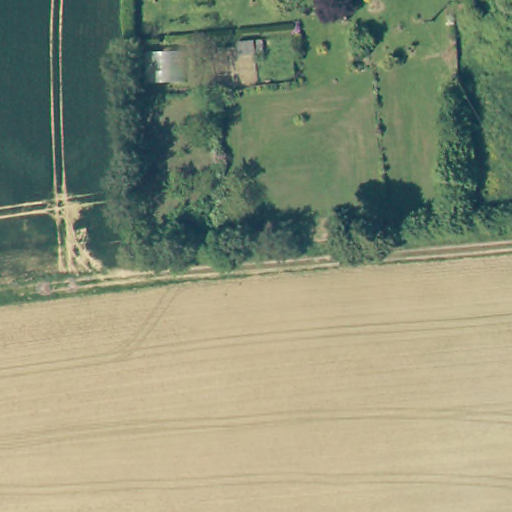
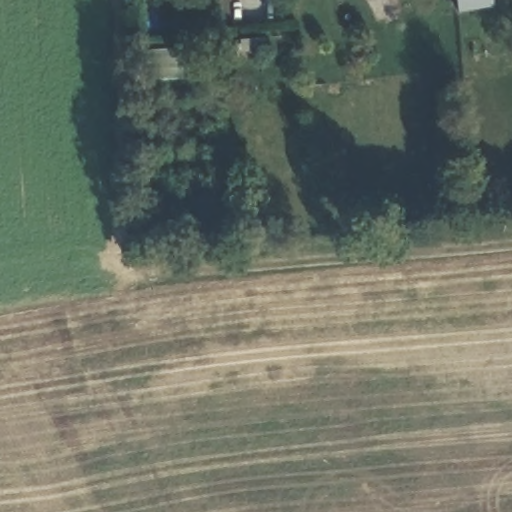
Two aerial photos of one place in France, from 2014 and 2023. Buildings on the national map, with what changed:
new [(457,0),(493,0),(495,7),(458,14),(457,0)]

